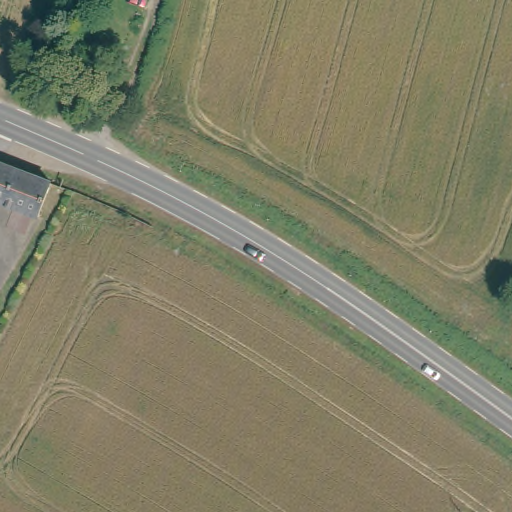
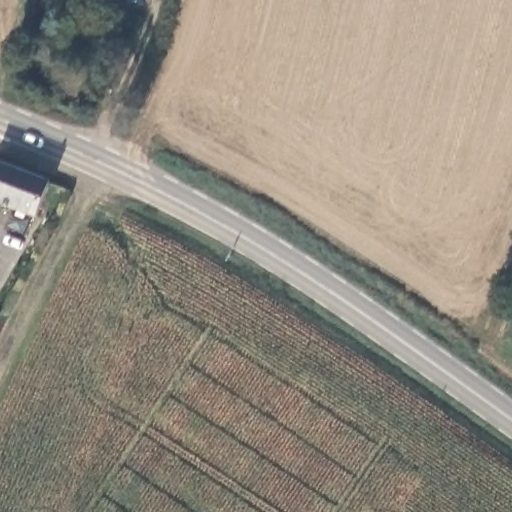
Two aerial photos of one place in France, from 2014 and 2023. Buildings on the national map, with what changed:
unchanged [(0,198),(0,161),(52,180),(40,213),(0,198)]

